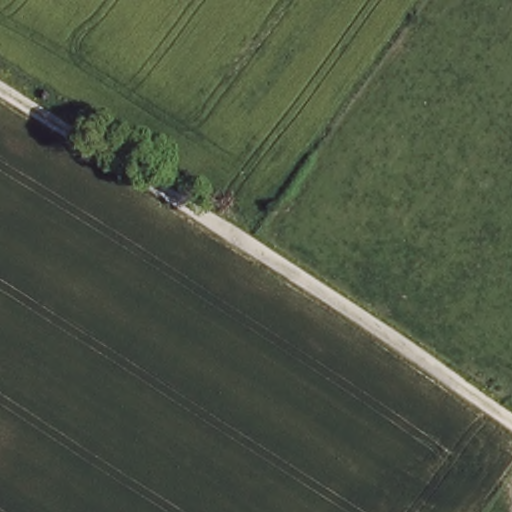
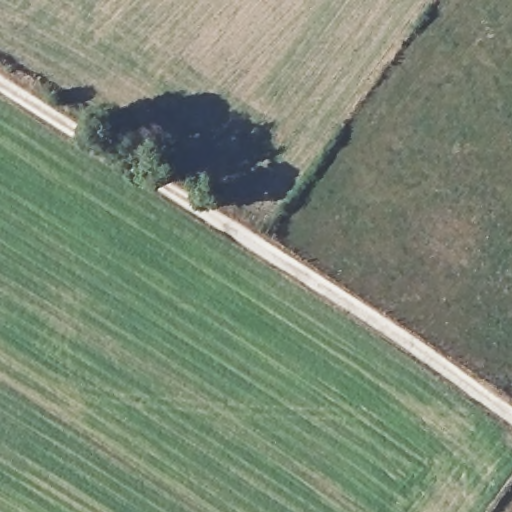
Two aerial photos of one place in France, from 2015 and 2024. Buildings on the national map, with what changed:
[]

